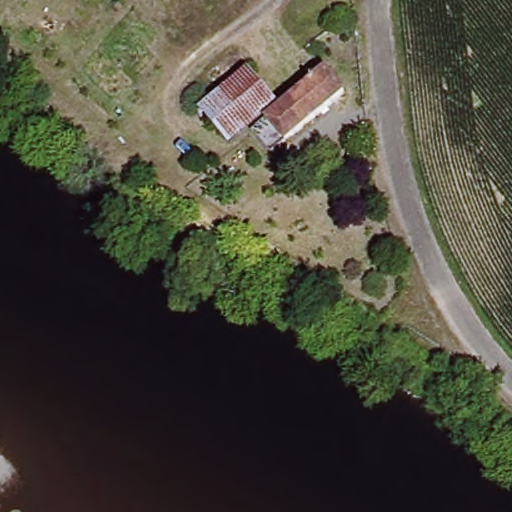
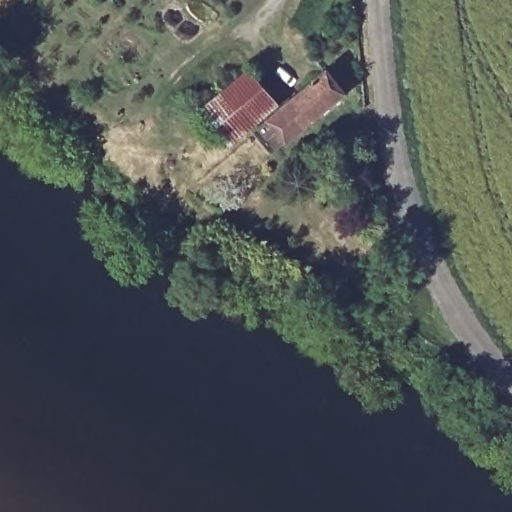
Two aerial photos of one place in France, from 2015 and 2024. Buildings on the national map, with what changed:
unchanged [(319,68),(344,95),(272,160),(260,148),(247,156),(232,141),(315,71),(319,68)]
unchanged [(232,76),(260,105),(217,141),(192,111),(232,76)]

